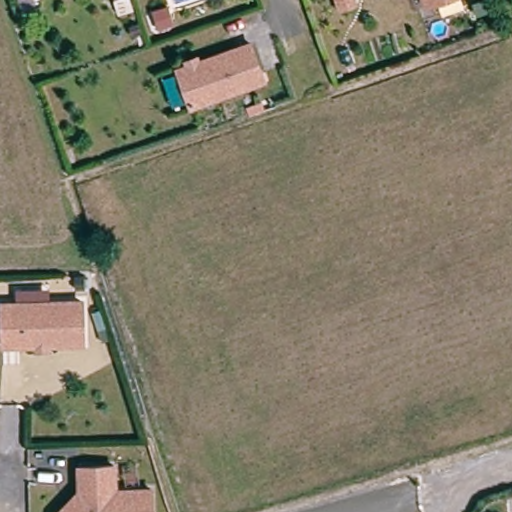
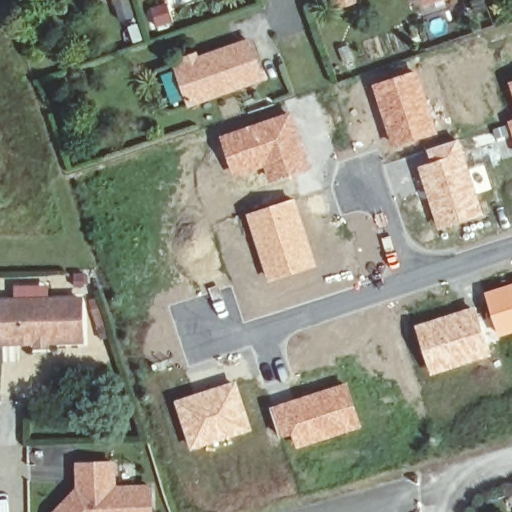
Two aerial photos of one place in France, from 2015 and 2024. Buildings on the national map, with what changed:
unchanged [(356,2),(339,9),(336,0),(355,0),(356,2)]
unchanged [(425,5),(423,0),(438,0),(425,5)]
unchanged [(169,2),(174,16),(162,20),(157,6),(169,2)]
unchanged [(250,42),(263,80),(190,106),(177,68),(250,42)]
new [(419,71),(440,134),(393,149),(372,85),(419,71)]
new [(292,112),(312,168),(271,184),(265,168),(234,178),(221,137),(292,112)]
new [(511,126),(512,125),(512,131),(511,126)]
new [(461,140),(485,216),(440,230),(419,167),(431,162),(427,150),(461,140)]
new [(296,198),(317,267),(269,282),(247,214),(296,198)]
unchanged [(84,270),(85,287),(69,288),(69,270),(84,270)]
new [(512,284),(512,333),(501,337),(486,293),(512,284)]
unchanged [(78,339),(0,343),(0,301),(76,297),(78,339)]
new [(477,307),(492,356),(431,376),(416,326),(477,307)]
new [(237,381),(254,431),(191,452),(175,401),(237,381)]
new [(347,382),(363,427),(297,450),(292,436),(281,439),(271,408),(347,382)]
unchanged [(74,466),(109,464),(110,489),(147,487),(147,512),(53,512),(60,506),(67,498),(74,491),(75,491),(74,466)]

